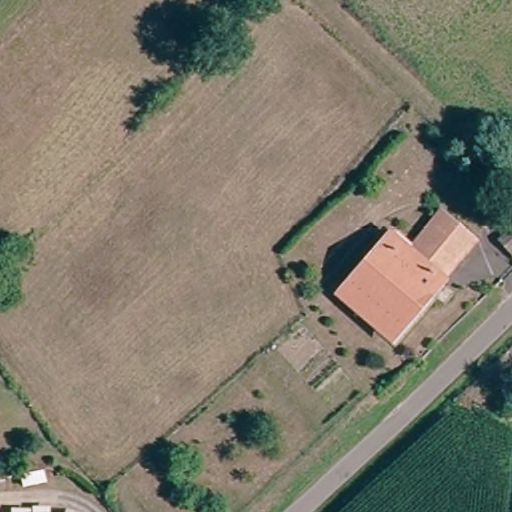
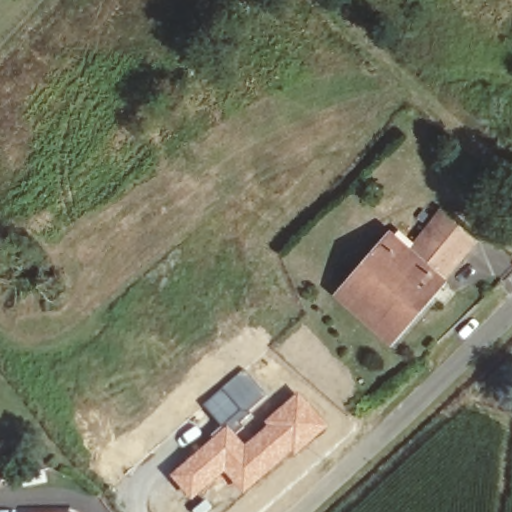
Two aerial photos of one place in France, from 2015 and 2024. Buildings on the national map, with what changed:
unchanged [(394,342),(341,297),(390,240),(408,256),(443,215),(477,244),(394,342)]
unchanged [(499,241),(512,229),(512,256),(499,241)]
new [(244,369),(267,395),(229,427),(227,425),(223,428),(203,405),(244,369)]
new [(223,428),(227,425),(229,427),(245,445),(266,427),(263,423),(298,393),(329,427),(243,496),(224,475),(191,501),(170,476),(223,428)]

